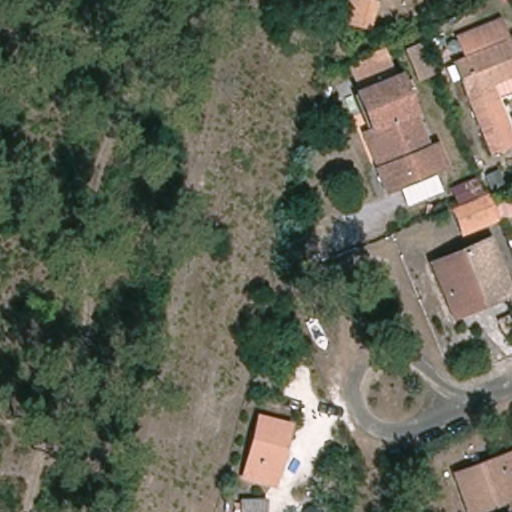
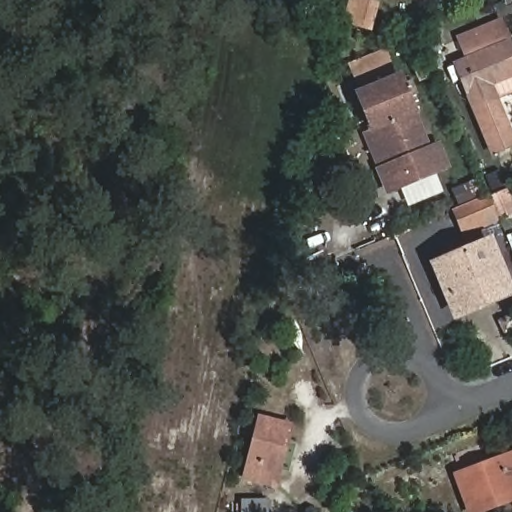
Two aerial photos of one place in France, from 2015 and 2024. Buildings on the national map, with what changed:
unchanged [(372,29),(345,22),(350,0),(360,0),(378,5),(372,29)]
unchanged [(512,37),(512,78),(496,85),(512,125),(512,146),(498,152),(474,95),(462,64),(473,58),(466,39),(506,22),(512,37)]
unchanged [(402,165),(387,172),(378,151),(363,114),(372,110),(358,75),(352,61),(392,44),(398,58),(427,131),(437,127),(445,148),(429,154),(437,172),(409,184),(402,165)]
unchanged [(457,209),(489,195),(489,196),(491,198),(509,191),(512,199),(512,214),(499,219),(499,218),(466,231),(457,209)]
unchanged [(457,316),(454,311),(436,266),(491,243),(509,287),(511,292),(457,316)]
unchanged [(277,470),(252,463),(263,419),(288,424),(277,470)]
unchanged [(474,512),(471,512),(458,477),(512,457),(512,498),(474,512)]
unchanged [(242,512),(242,501),(269,501),(269,512),(242,512)]

